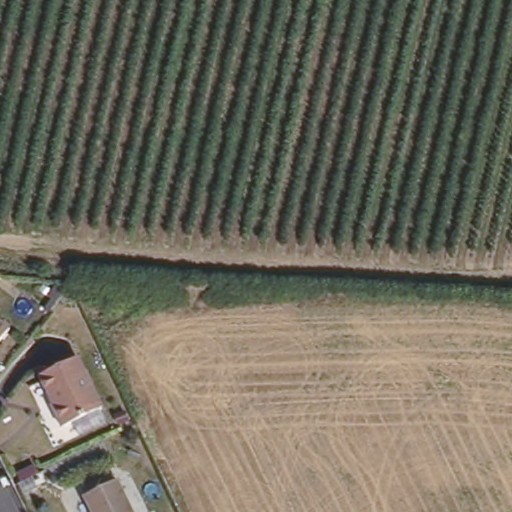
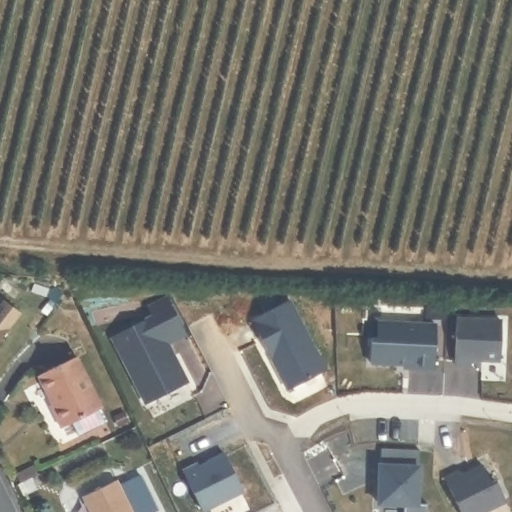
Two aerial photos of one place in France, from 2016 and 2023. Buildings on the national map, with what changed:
new [(187,336),(171,345),(188,381),(147,405),(110,333),(150,311),(146,306),(169,296),(187,336)]
new [(327,368),(287,388),(253,317),(292,300),(327,368)]
new [(501,362),(472,360),(472,366),(457,365),(458,318),(502,319),(501,362)]
new [(406,370),(402,364),(371,362),(372,338),(380,332),(380,320),(437,324),(435,369),(406,370)]
unchanged [(0,341),(0,324),(8,331),(0,341)]
unchanged [(62,430),(48,404),(53,401),(37,372),(74,355),(102,410),(62,430)]
new [(183,470),(225,452),(244,491),(202,512),(183,470)]
new [(461,469),(463,473),(484,463),(492,480),(496,477),(507,498),(478,512),(463,512),(446,476),(461,469)]
new [(382,465),(419,466),(417,503),(427,503),(427,512),(405,512),(405,504),(380,503),(382,465)]
unchanged [(132,512),(91,512),(82,496),(115,479),(132,512)]

